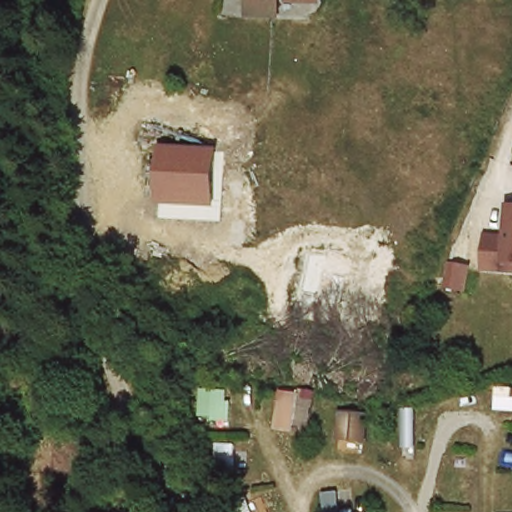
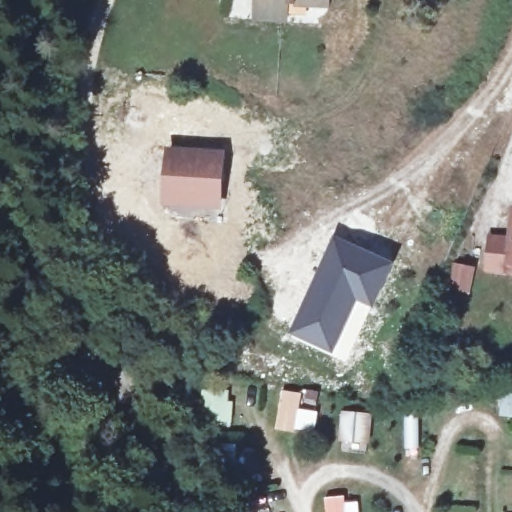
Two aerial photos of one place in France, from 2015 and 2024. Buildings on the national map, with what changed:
unchanged [(293,9),(293,24),(270,23),(271,0),(333,0),(332,10),(293,9)]
unchanged [(224,150),(221,210),(161,207),(166,147),(224,150)]
new [(333,232),(395,261),(373,308),(360,301),(335,353),(289,332),(333,232)]
unchanged [(492,234),(512,235),(512,266),(488,263),(492,234)]
new [(452,261),(475,266),(469,297),(447,293),(452,261)]

